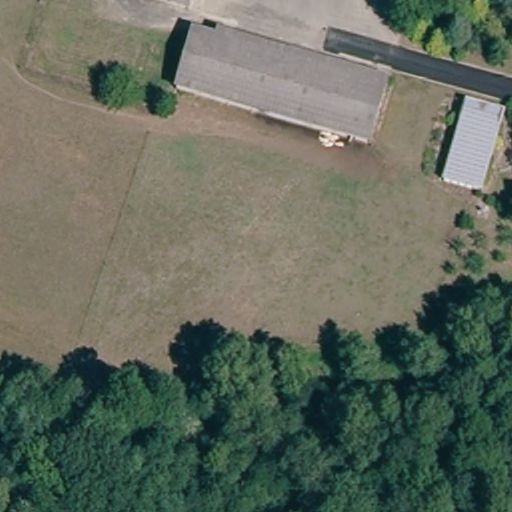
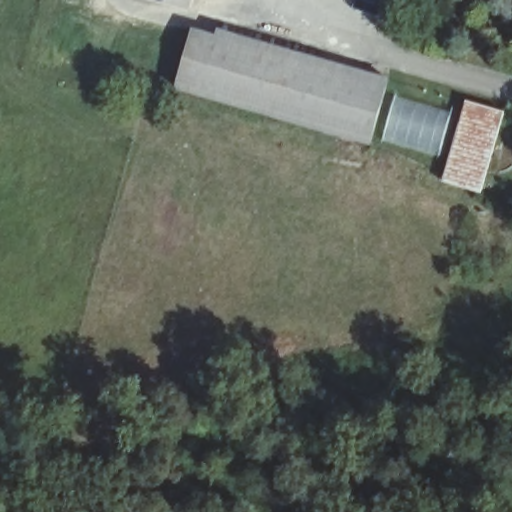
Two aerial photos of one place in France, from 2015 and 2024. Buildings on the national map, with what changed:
unchanged [(176,5),(162,0),(188,0),(186,8),(176,5)]
unchanged [(192,28),(218,35),(219,29),(392,80),(374,142),(176,85),(192,28)]
new [(440,154),(383,137),(396,97),(452,112),(440,154)]
unchanged [(442,182),(468,102),(505,112),(482,194),(442,182)]

